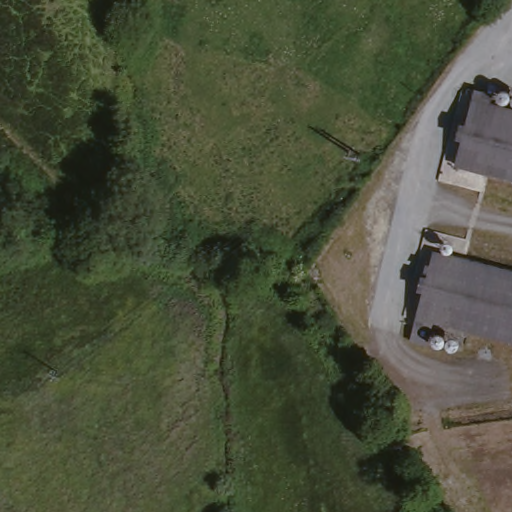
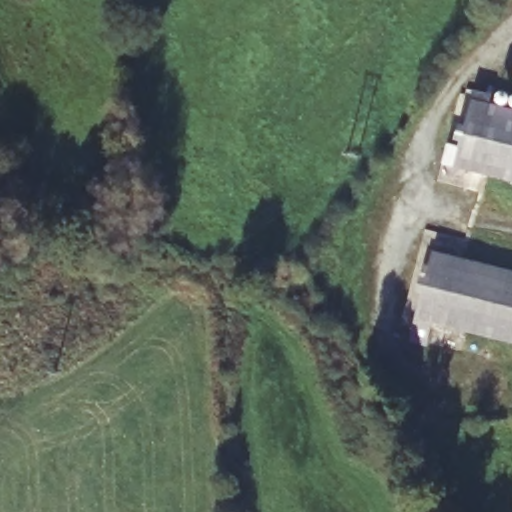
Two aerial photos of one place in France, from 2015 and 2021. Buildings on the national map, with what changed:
unchanged [(512,109),(512,180),(453,162),(472,97),(512,109)]
unchanged [(439,256),(512,271),(512,340),(421,319),(439,256)]

